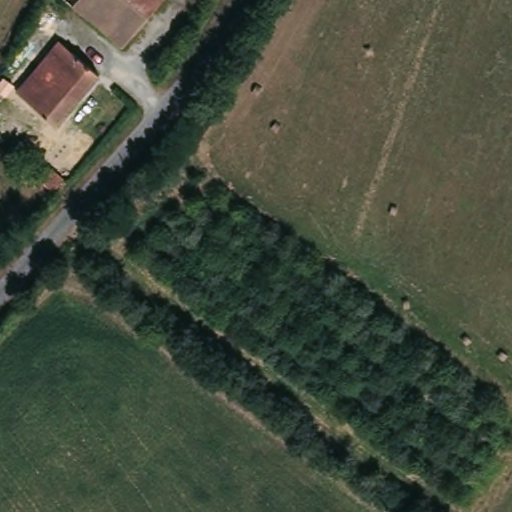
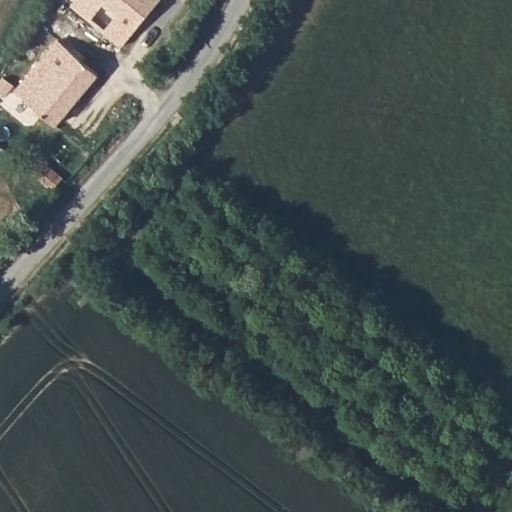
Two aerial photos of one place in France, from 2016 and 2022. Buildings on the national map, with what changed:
unchanged [(67,0),(165,0),(124,50),(67,0)]
unchanged [(34,75),(63,41),(102,74),(61,122),(20,88),(34,75)]
unchanged [(19,85),(10,100),(7,97),(1,105),(0,104),(0,92),(7,78),(19,85)]
unchanged [(44,162),(65,175),(55,191),(35,177),(44,162)]

